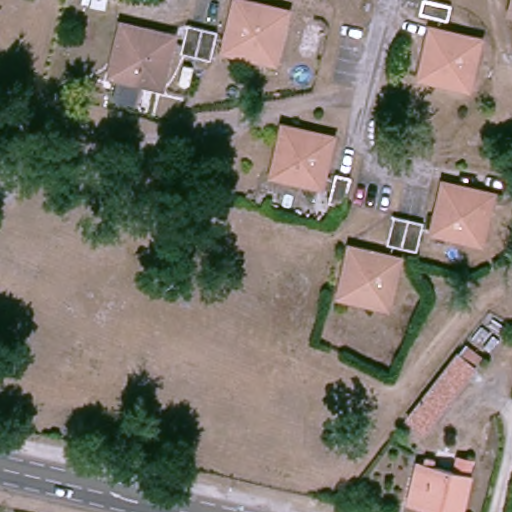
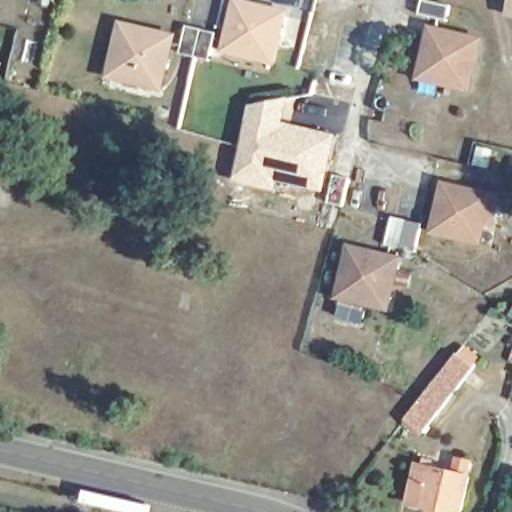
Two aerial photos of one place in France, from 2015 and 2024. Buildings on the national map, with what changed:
unchanged [(452,18),(423,10),(426,0),(432,0),(454,5),(452,18)]
unchanged [(277,62),(229,50),(240,7),(287,19),(277,62)]
unchanged [(189,55),(177,51),(184,26),(196,29),(211,34),(205,60),(189,55)]
unchanged [(161,87),(114,73),(125,30),(174,41),(161,87)]
unchanged [(470,89),(427,78),(438,34),(481,45),(470,89)]
new [(272,191),(234,182),(250,105),(290,98),(283,126),(290,127),(277,177),(272,191)]
unchanged [(321,189),(277,177),(290,127),(333,139),(321,189)]
unchanged [(342,210),(330,208),(336,180),(348,181),(342,210)]
unchanged [(484,245),(435,232),(445,186),(494,199),(484,245)]
unchanged [(412,250),(399,246),(386,243),(392,217),(405,220),(419,225),(412,250)]
unchanged [(389,305),(342,294),(355,248),(402,260),(389,305)]
unchanged [(463,360),(477,372),(432,430),(419,417),(463,360)]
unchanged [(449,512),(405,502),(416,463),(472,475),(464,512),(449,512)]

